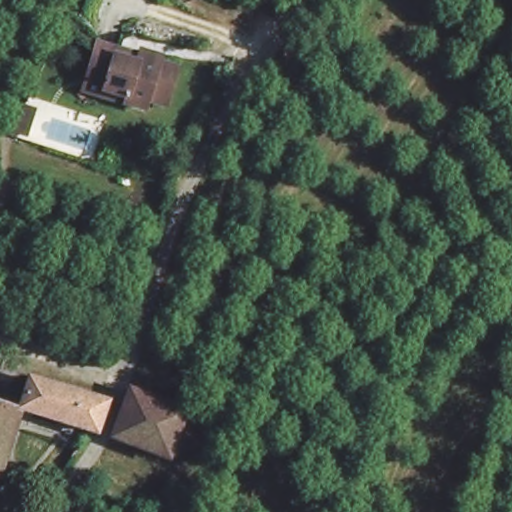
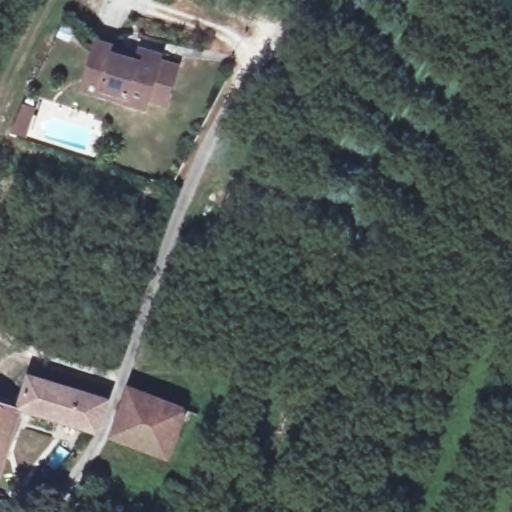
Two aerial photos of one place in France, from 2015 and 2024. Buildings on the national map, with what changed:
unchanged [(92,63),(100,32),(139,43),(144,38),(165,44),(164,49),(183,54),(172,94),(153,89),(151,97),(132,92),(88,81),(92,63)]
unchanged [(26,111),(37,113),(31,139),(20,136),(26,111)]
unchanged [(15,405),(24,376),(34,378),(89,394),(98,396),(87,426),(86,426),(15,405)]
unchanged [(176,459),(162,453),(110,433),(124,400),(129,387),(181,407),(195,412),(176,459)]
unchanged [(14,407),(0,453),(0,404),(5,405),(14,407)]
unchanged [(186,489),(175,512),(153,512),(168,481),(186,489)]

